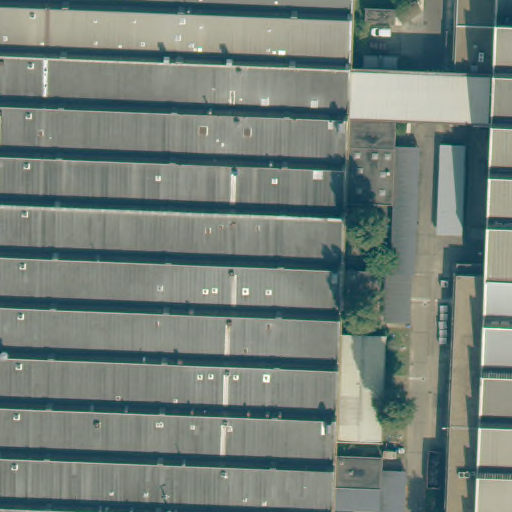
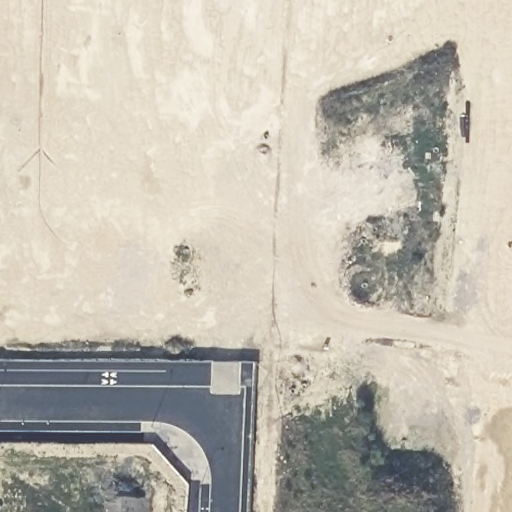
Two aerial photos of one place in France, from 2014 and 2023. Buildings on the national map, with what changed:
demolished [(350,0),(347,68),(345,118),(391,120),(391,133),(388,200),(343,199),(341,269),(371,270),(370,295),(340,294),(339,332),(388,335),(383,442),(336,440),(335,453),(382,456),(382,470),(381,488),(334,487),(333,509),(333,512),(0,512),(0,0),(350,0)]
demolished [(457,274),(487,275),(488,238),(469,237),(474,124),(493,125),(495,75),(455,73),(459,0),(512,0),(512,512),(448,512),(457,274)]
demolished [(363,19),(363,7),(393,8),(392,21),(363,19)]
demolished [(359,58),(394,60),(393,70),(358,69),(359,58)]

